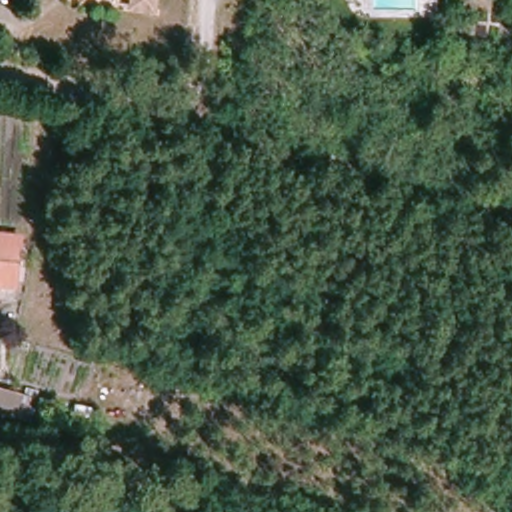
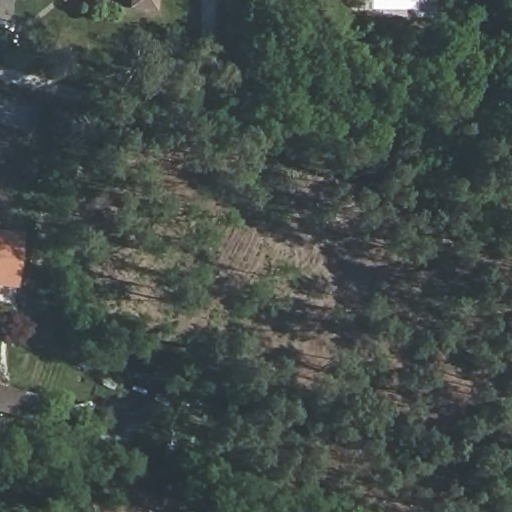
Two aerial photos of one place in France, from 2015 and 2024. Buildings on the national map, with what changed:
unchanged [(130,7),(131,0),(155,0),(154,11),(130,7)]
unchanged [(15,286),(0,284),(0,233),(20,235),(15,286)]
unchanged [(39,398),(31,423),(17,419),(0,415),(0,388),(23,395),(39,398)]

